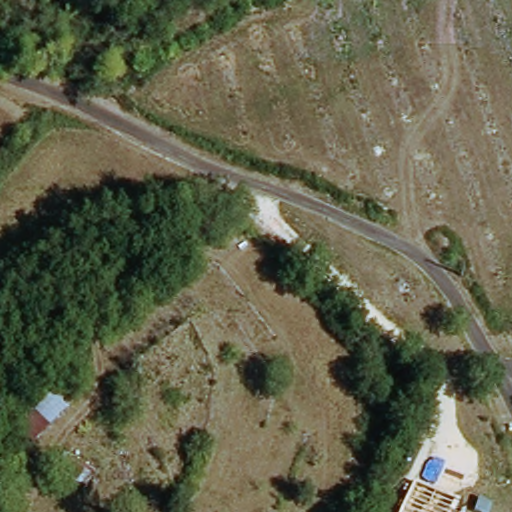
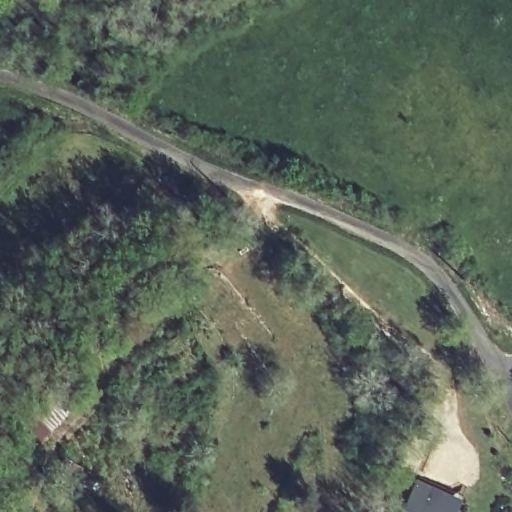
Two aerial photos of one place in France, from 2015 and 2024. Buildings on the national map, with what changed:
unchanged [(32,447),(16,430),(49,394),(65,413),(32,447)]
new [(414,483),(453,500),(448,512),(402,512),(414,483)]

